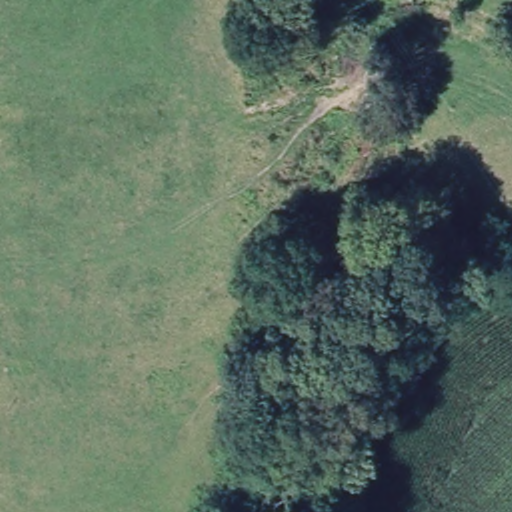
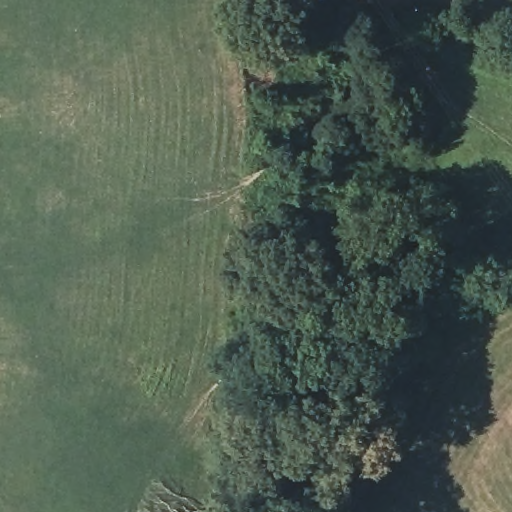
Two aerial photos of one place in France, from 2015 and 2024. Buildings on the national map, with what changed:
[]

